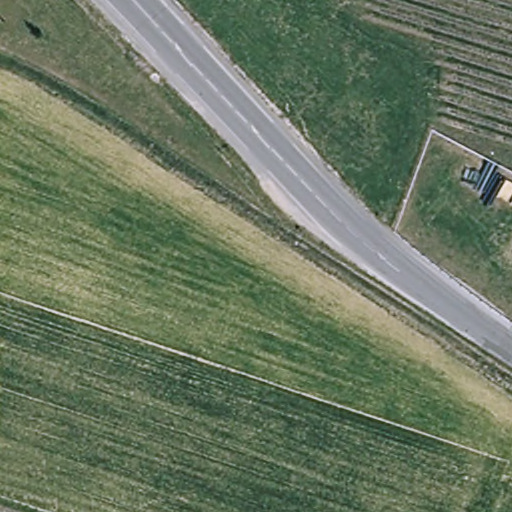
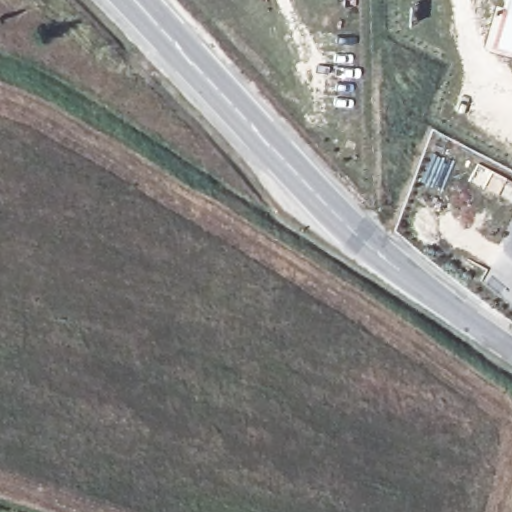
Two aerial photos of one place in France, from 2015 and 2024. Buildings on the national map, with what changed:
new [(496,44),(509,0),(512,0),(512,49),(496,44)]

